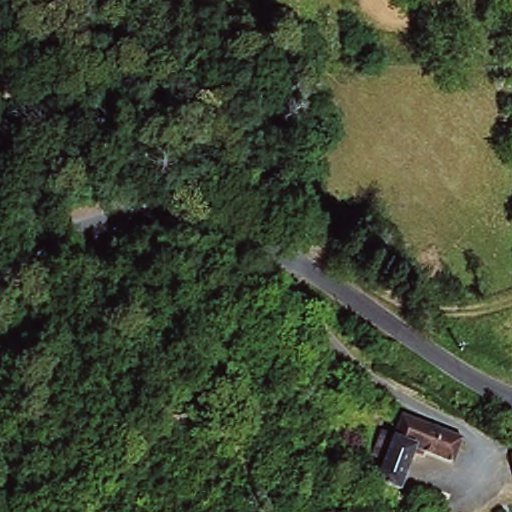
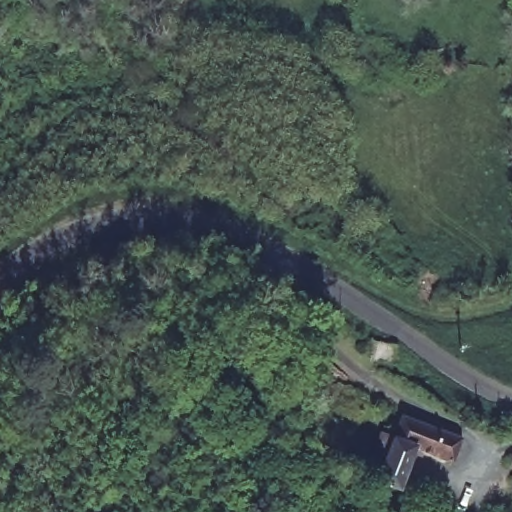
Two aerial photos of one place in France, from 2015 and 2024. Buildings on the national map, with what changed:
unchanged [(370,437),(377,418),(460,446),(452,470),(393,452),(380,494),(357,484),(360,466),(347,462),(357,434),(370,437)]
unchanged [(352,490),(347,512),(330,507),(337,484),(352,490)]

